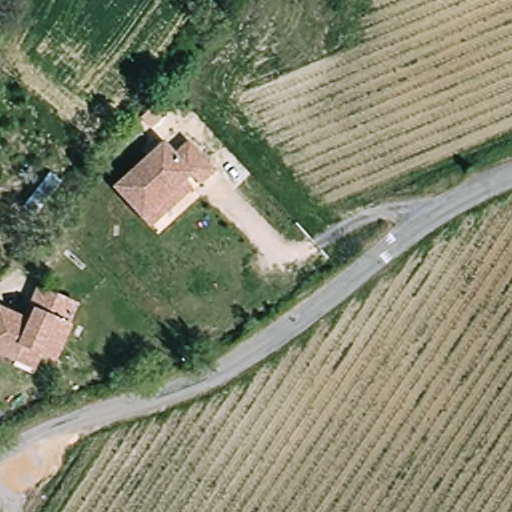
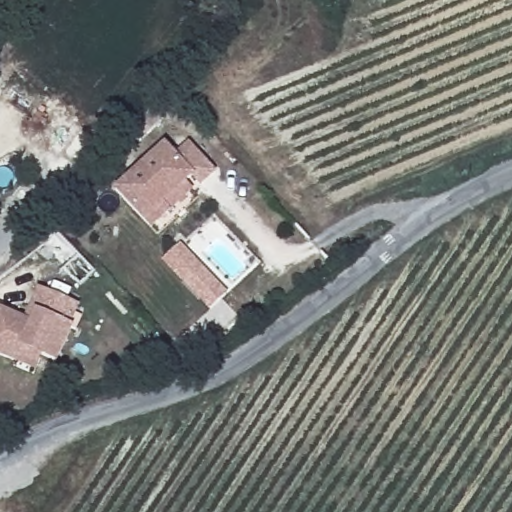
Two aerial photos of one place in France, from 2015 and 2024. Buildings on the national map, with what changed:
unchanged [(177,213),(160,230),(125,196),(172,147),(182,157),(192,146),(220,172),(205,187),(197,180),(170,206),(177,213)]
new [(163,260),(181,243),(230,294),(211,311),(163,260)]
unchanged [(18,365),(0,357),(0,315),(1,312),(28,322),(40,290),(78,305),(71,323),(72,328),(60,363),(44,357),(38,372),(18,365)]

